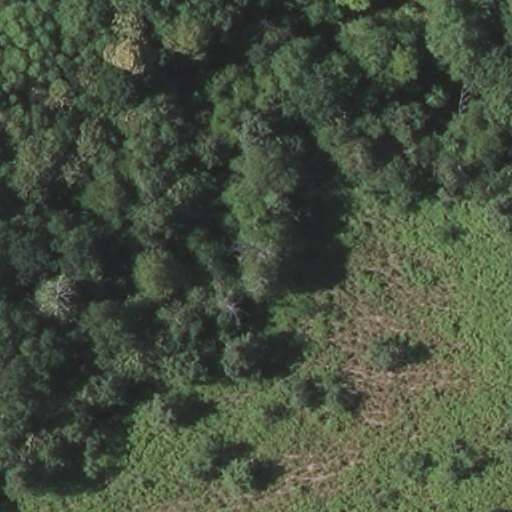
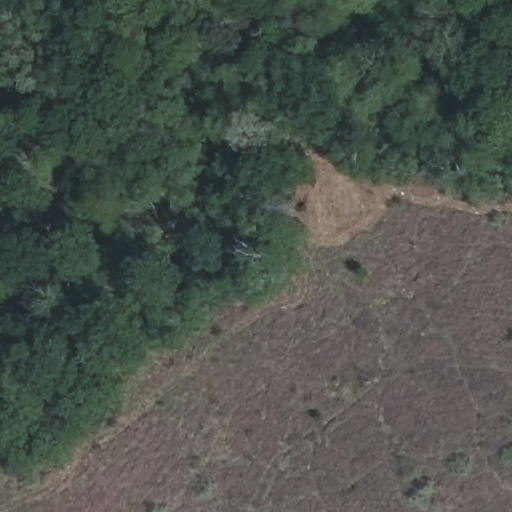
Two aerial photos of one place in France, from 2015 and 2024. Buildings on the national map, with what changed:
[]

